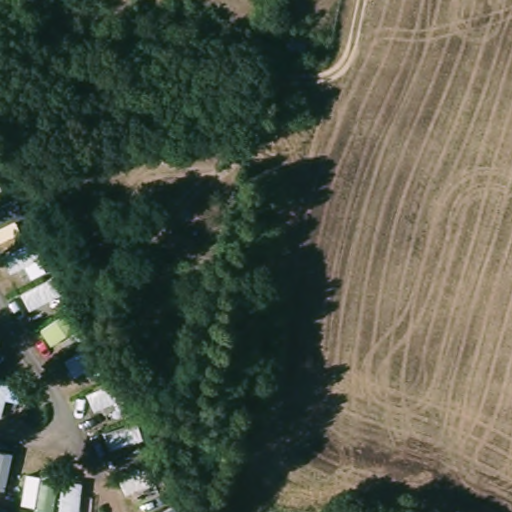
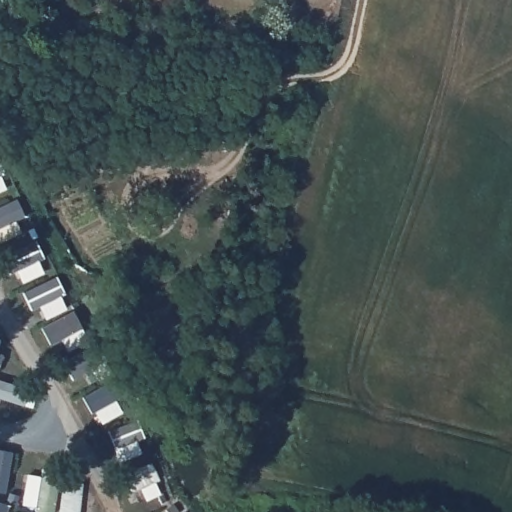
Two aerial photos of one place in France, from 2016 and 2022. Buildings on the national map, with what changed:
unchanged [(276,24),(320,31),(313,54),(273,46),(276,24)]
unchanged [(11,502),(7,512),(0,512),(0,499),(11,502)]

